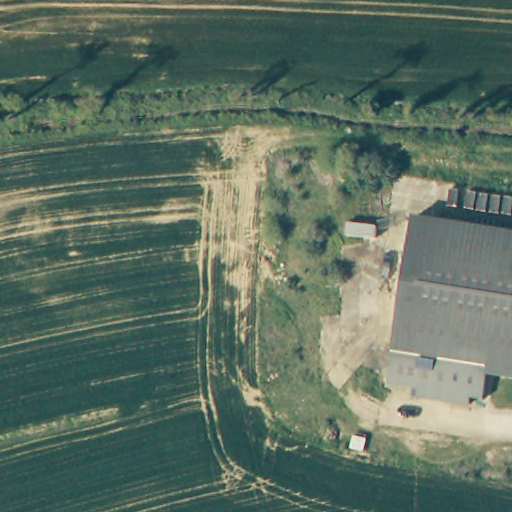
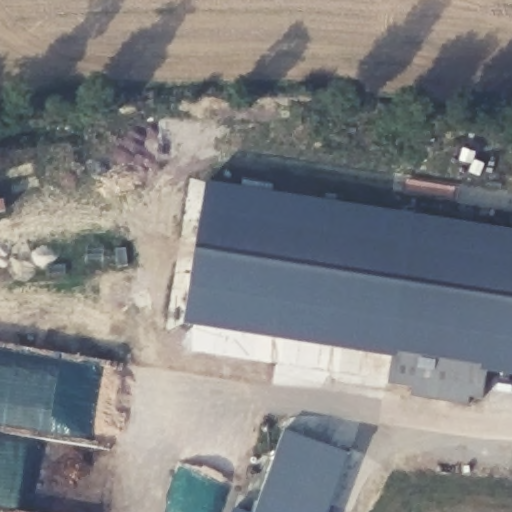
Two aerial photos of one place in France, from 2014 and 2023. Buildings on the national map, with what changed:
new [(395,355),(391,359),(185,325),(207,182),(414,219),(395,355)]
unchanged [(414,219),(512,234),(512,373),(490,369),(395,355),(414,219)]
unchanged [(485,399),(390,384),(391,377),(395,355),(490,369),(485,399)]
new [(328,512),(255,512),(283,429),(350,453),(328,512)]
new [(233,508),(244,512),(232,512),(233,508)]

